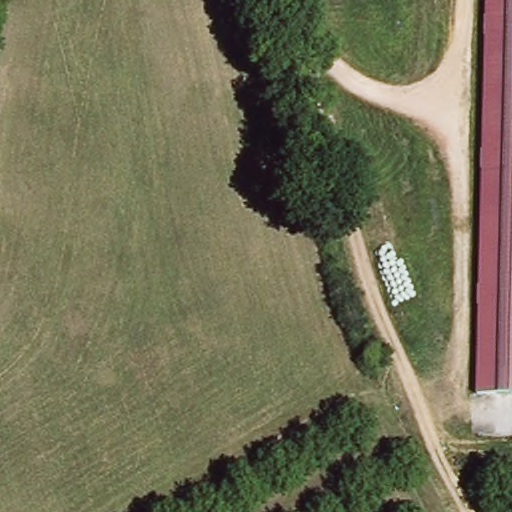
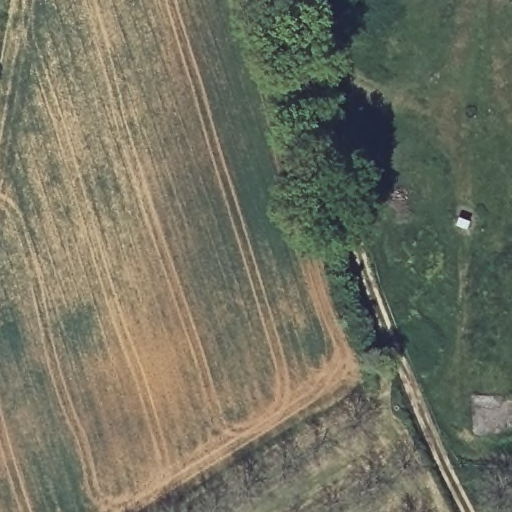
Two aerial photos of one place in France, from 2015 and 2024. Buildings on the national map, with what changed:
demolished [(487,0),(512,0),(512,391),(494,391),(487,0)]

